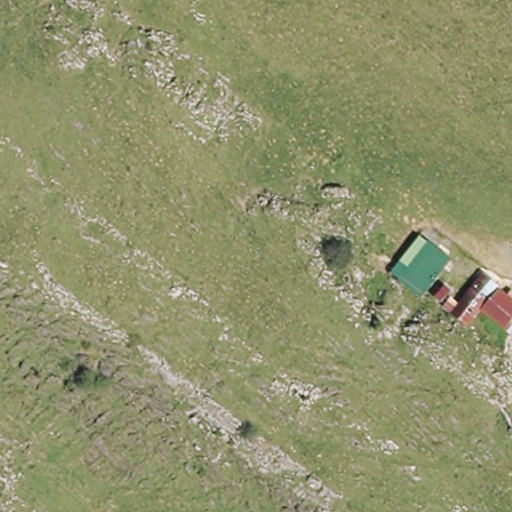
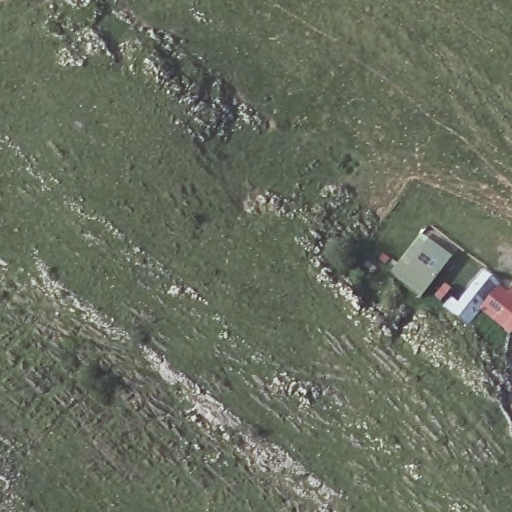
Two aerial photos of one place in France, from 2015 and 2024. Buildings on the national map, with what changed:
unchanged [(400,280),(430,243),(454,262),(424,299),(400,280)]
unchanged [(512,334),(511,336),(482,312),(470,328),(444,308),(453,298),(461,303),(483,271),(512,294),(512,334)]

